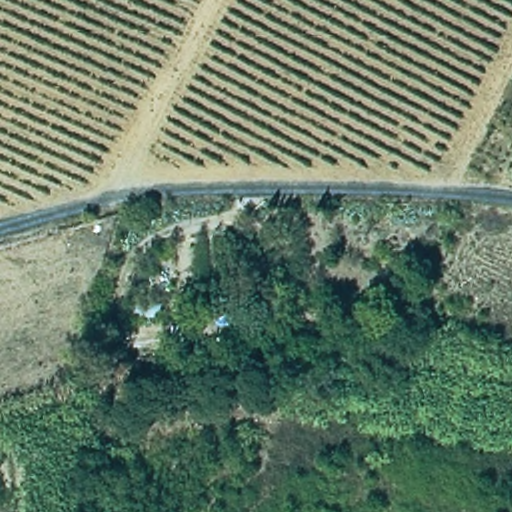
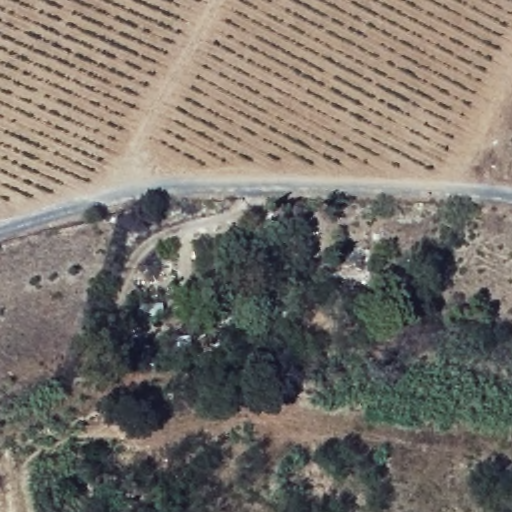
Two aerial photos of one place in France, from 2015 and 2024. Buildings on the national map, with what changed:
unchanged [(260,305),(260,328),(200,330),(199,313),(260,305)]

